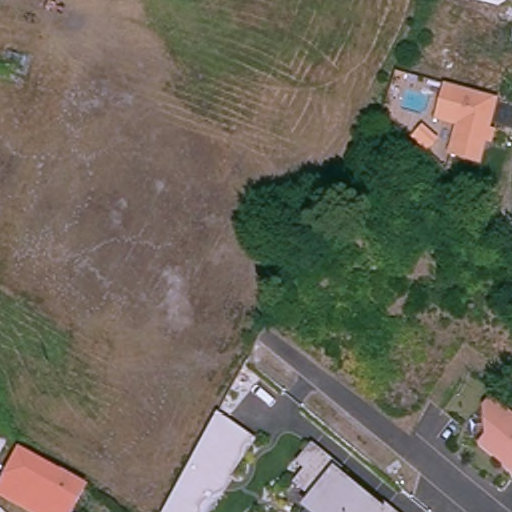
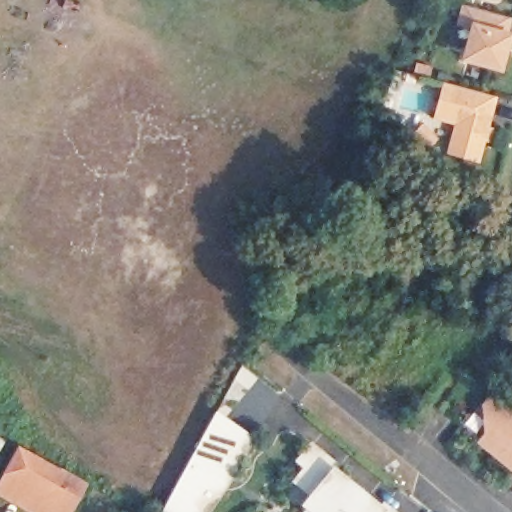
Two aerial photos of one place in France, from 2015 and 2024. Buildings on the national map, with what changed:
new [(465,5),(510,17),(506,34),(510,36),(501,69),(465,59),(473,27),(460,23),(465,5)]
unchanged [(443,83),(497,97),(491,126),(497,129),(492,145),(486,144),(481,164),(447,154),(455,126),(434,119),(443,83)]
unchanged [(489,437),(488,409),(492,402),(505,410),(512,416),(512,470),(509,467),(502,462),(482,445),(489,437)]
unchanged [(227,482),(230,484),(213,512),(171,512),(211,427),(218,411),(254,437),(227,482)]
unchanged [(26,446),(90,484),(77,508),(11,471),(26,446)]
unchanged [(315,500),(297,485),(309,472),(301,465),(313,450),(340,472),(337,476),(370,503),(373,499),(386,510),(389,512),(309,512),(306,510),(315,500)]
unchanged [(40,512),(1,490),(11,471),(77,508),(74,512),(40,512)]

